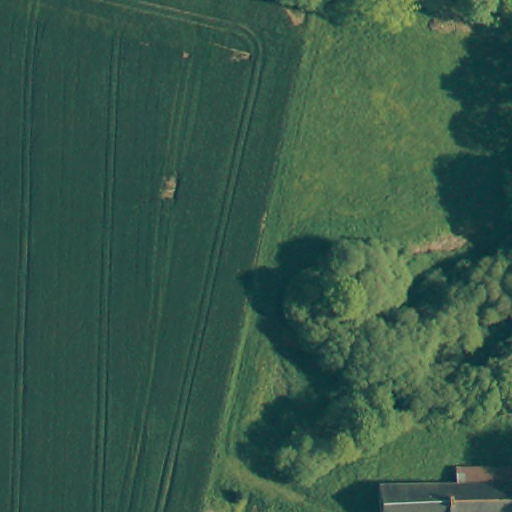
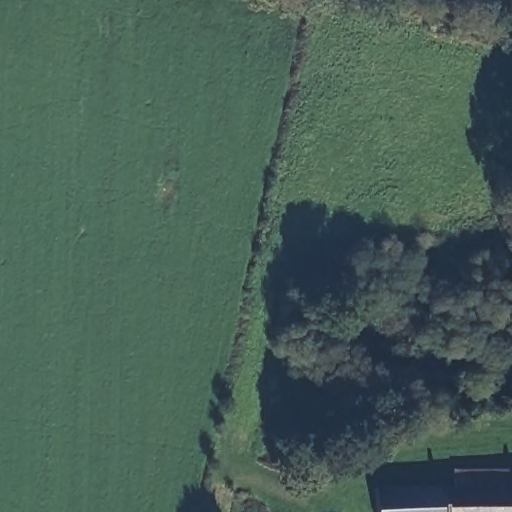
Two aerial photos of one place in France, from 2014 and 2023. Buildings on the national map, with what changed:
unchanged [(512,466),(512,485),(473,485),(453,485),(453,468),(512,466)]
unchanged [(473,485),(512,485),(512,512),(376,512),(374,487),(453,485),(473,485)]

